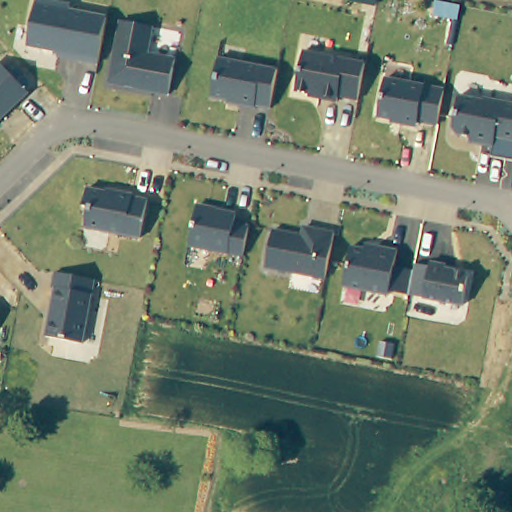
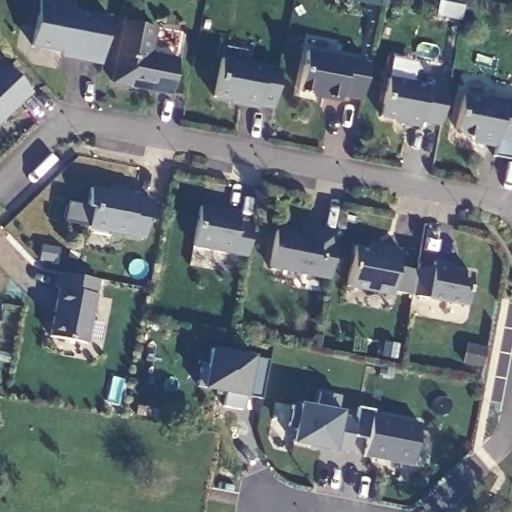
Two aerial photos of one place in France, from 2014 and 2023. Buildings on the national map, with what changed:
unchanged [(23,45),(32,0),(40,0),(66,5),(65,10),(102,17),(97,45),(93,64),(74,60),(76,49),(61,46),(53,51),(23,45)]
unchanged [(117,20),(147,26),(142,53),(170,59),(163,94),(104,82),(117,20)]
unchanged [(354,99),(353,100),(334,96),(333,102),(315,99),(315,96),(291,91),(299,51),(361,64),(354,99)]
unchanged [(270,81),(265,109),(250,105),(250,108),(232,105),(233,102),(206,97),(214,58),(273,70),(270,81)]
unchanged [(0,113),(0,66),(23,91),(0,113)]
unchanged [(433,125),(413,121),(412,127),(395,124),(396,121),(373,116),(380,79),(439,90),(433,125)]
unchanged [(489,147),(476,145),(472,139),(452,135),(448,129),(454,95),(479,100),(479,98),(512,104),(512,142),(490,138),(489,147)]
unchanged [(133,237),(77,226),(81,206),(76,205),(80,186),(108,191),(108,189),(127,192),(126,195),(141,198),(133,237)]
unchanged [(184,245),(192,205),(231,214),(229,223),(244,226),(238,255),(184,245)]
unchanged [(320,278),(261,266),(268,230),(298,235),(300,226),(329,232),(321,278),(320,278)]
unchanged [(346,246),(374,251),(375,246),(392,250),(383,296),(338,287),(346,246)]
unchanged [(406,285),(410,263),(425,266),(426,261),(441,265),(440,270),(464,274),(458,305),(404,295),(406,285)]
unchanged [(38,335),(47,287),(44,286),(47,271),(67,275),(87,278),(74,342),(38,335)]
new [(257,398),(243,396),(240,410),(218,406),(222,392),(199,387),(206,349),(250,356),(266,359),(257,398)]
demolished [(363,470),(335,465),(353,363),(382,368),(363,470)]
new [(411,466),(361,457),(364,440),(351,437),(347,453),(330,450),(288,442),(296,402),(314,405),(316,391),(337,396),(335,407),(341,408),(339,416),(353,419),(357,406),(371,410),(370,413),(416,422),(411,466)]

